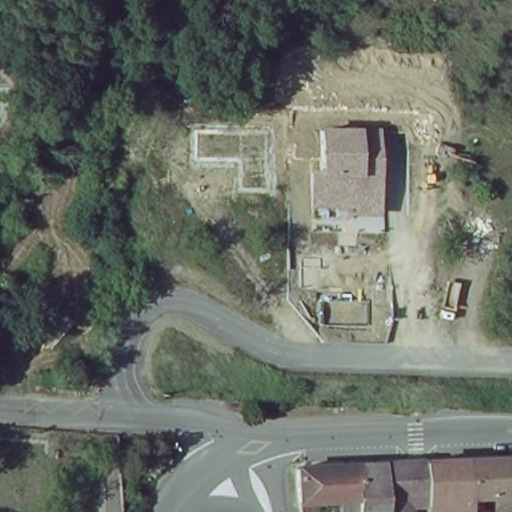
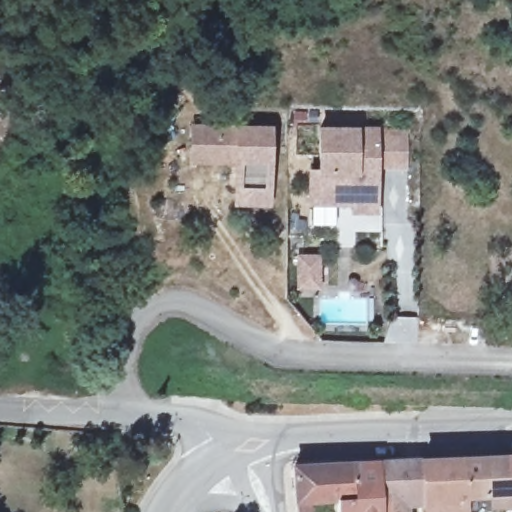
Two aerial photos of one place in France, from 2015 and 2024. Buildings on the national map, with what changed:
new [(243,162),(198,162),(198,131),(273,133),(272,192),(272,204),(242,203),(243,192),(243,162)]
unchanged [(375,172),(383,172),(382,231),(312,233),(312,171),(323,171),(323,132),(376,131),(375,172)]
unchanged [(147,448),(147,449),(112,448),(111,431),(147,433),(147,448)]
unchanged [(490,508),(490,497),(465,497),(465,457),(507,455),(509,493),(512,493),(512,508),(490,508)]
unchanged [(509,493),(507,455),(512,455),(512,493),(509,493)]
unchanged [(428,505),(428,493),(425,459),(465,457),(465,497),(465,512),(429,512),(428,505)]
unchanged [(378,484),(377,460),(425,459),(428,493),(406,495),(406,512),(380,512),(378,484)]
unchanged [(326,495),(311,495),(310,507),(300,507),(297,466),(356,462),(377,460),(378,484),(380,512),(327,512),(326,495)]

